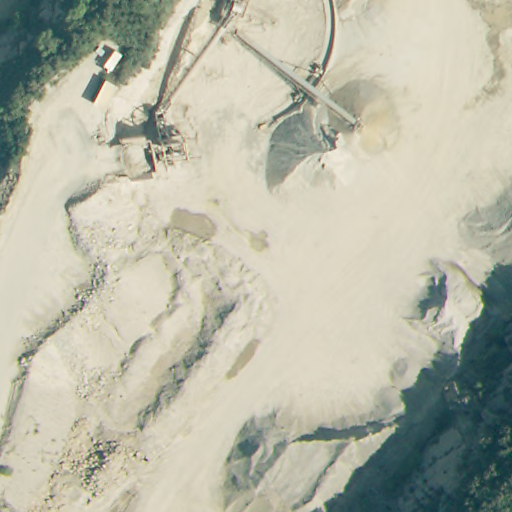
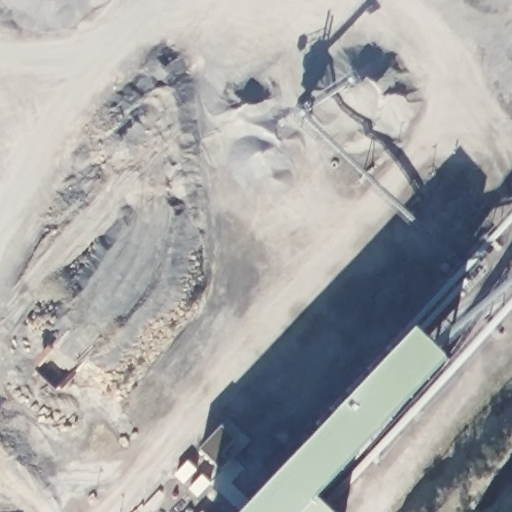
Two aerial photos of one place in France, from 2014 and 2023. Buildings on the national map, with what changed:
demolished [(155,166),(156,172),(130,177),(125,145),(183,133),(187,159),(155,166)]
new [(449,360),(323,498),(336,512),(249,512),(419,331),(449,360)]

